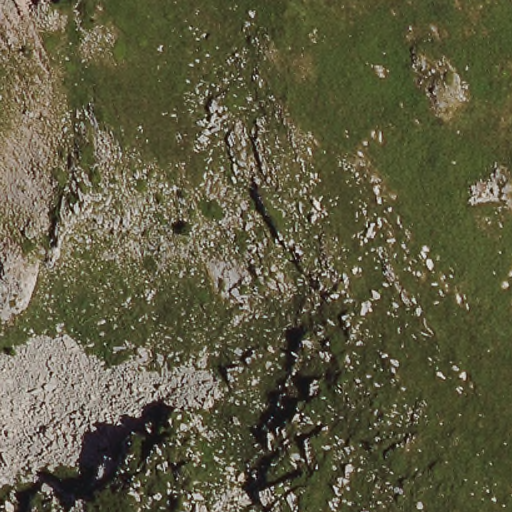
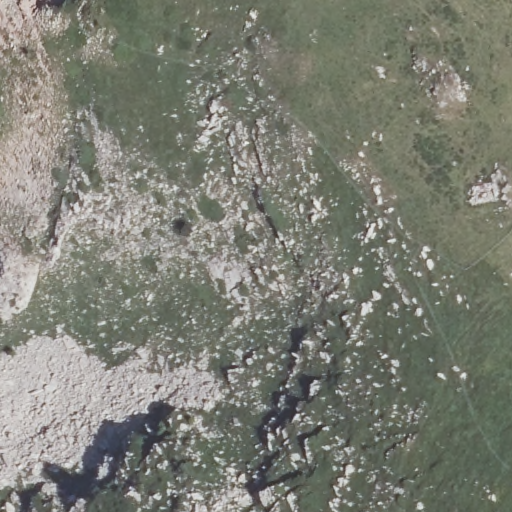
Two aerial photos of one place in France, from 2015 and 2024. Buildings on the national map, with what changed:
[]

